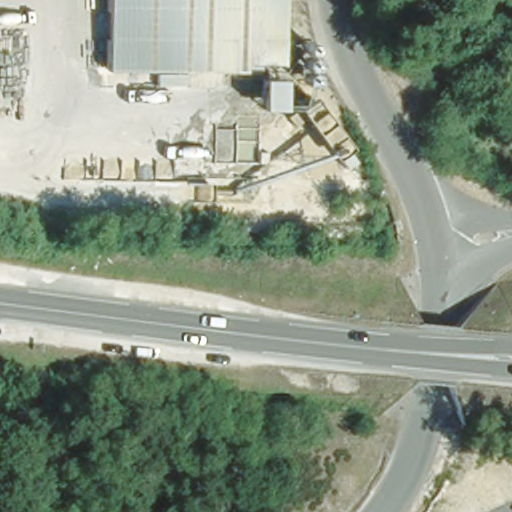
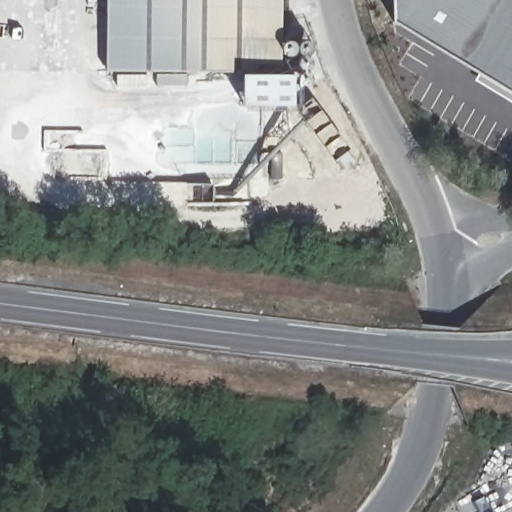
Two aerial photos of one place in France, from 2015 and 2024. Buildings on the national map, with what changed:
unchanged [(104,64),(105,0),(276,0),(276,64),(104,64)]
new [(481,71),(396,20),(396,0),(512,0),(512,100),(476,79),(481,71)]
new [(243,72),(295,73),(294,57),(276,56),(276,39),(312,39),(312,86),(295,86),(295,105),(242,105),(243,72)]

